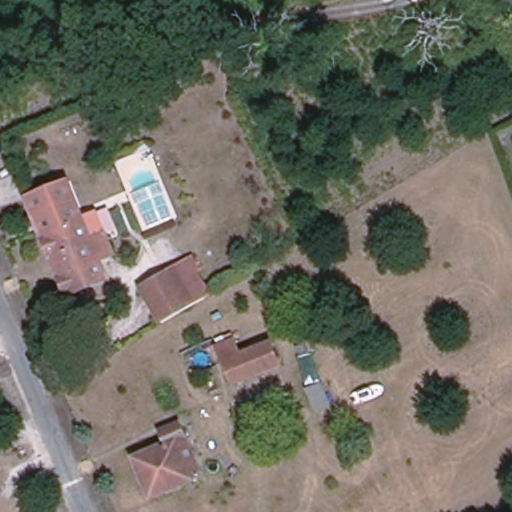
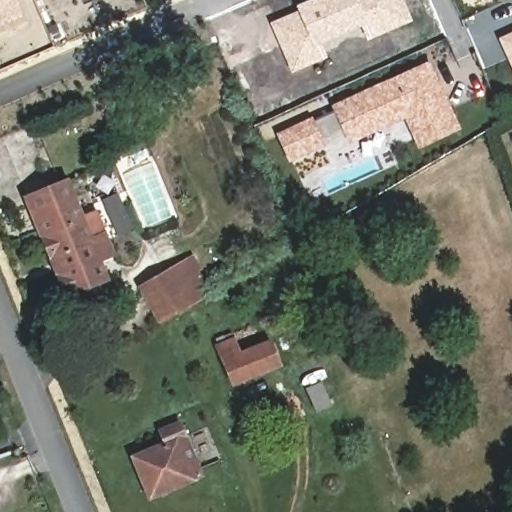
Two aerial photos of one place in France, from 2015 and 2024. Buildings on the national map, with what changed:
new [(16,10),(0,17),(0,0),(12,0),(13,3),(16,10)]
new [(369,42),(363,27),(323,45),(328,57),(292,74),(270,23),(299,11),(298,6),(312,0),(403,0),(413,22),(369,42)]
new [(503,40),(512,35),(512,60),(503,40)]
new [(454,127),(421,142),(407,112),(352,137),(339,110),(427,69),(454,127)]
unchanged [(75,206),(78,212),(93,207),(110,250),(95,256),(104,275),(64,291),(24,192),(29,191),(64,177),(65,180),(75,206)]
unchanged [(159,321),(140,286),(175,265),(197,302),(159,321)]
unchanged [(282,366),(235,385),(224,361),(273,342),(282,366)]
unchanged [(333,406),(318,412),(308,390),(323,383),(333,406)]
unchanged [(203,476),(151,497),(134,457),(168,443),(163,431),(181,423),(203,476)]

